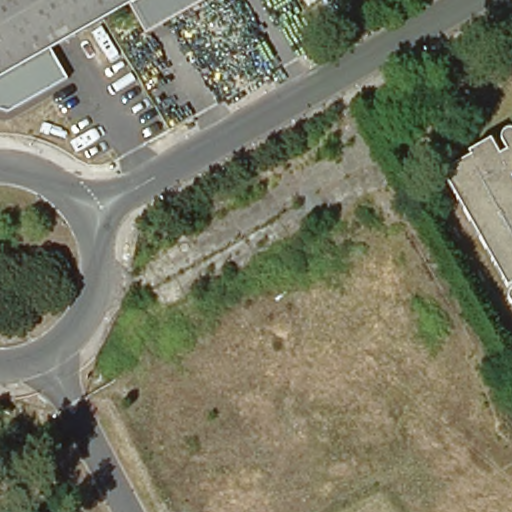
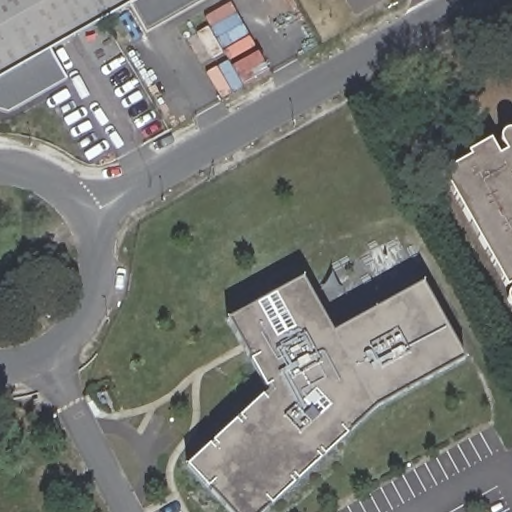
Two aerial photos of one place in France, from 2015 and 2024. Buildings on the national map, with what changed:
unchanged [(131,5),(50,51),(0,79),(0,0),(140,0),(131,5)]
unchanged [(140,0),(212,0),(149,35),(131,5),(140,0)]
unchanged [(8,113),(0,111),(0,79),(50,51),(68,80),(8,113)]
unchanged [(506,285),(441,171),(464,158),(466,154),(487,141),(494,154),(501,151),(497,140),(496,138),(497,135),(498,133),(500,131),(503,131),(506,131),(509,132),(511,134),(512,136),(512,178),(510,179),(512,183),(512,282),(506,285)]
new [(465,359),(376,408),(263,512),(228,512),(187,466),(266,390),(229,319),(303,277),(332,332),(423,283),(465,359)]
unchanged [(510,304),(508,302),(507,301),(506,299),(505,296),(506,294),(507,292),(512,289),(512,304),(510,304)]

